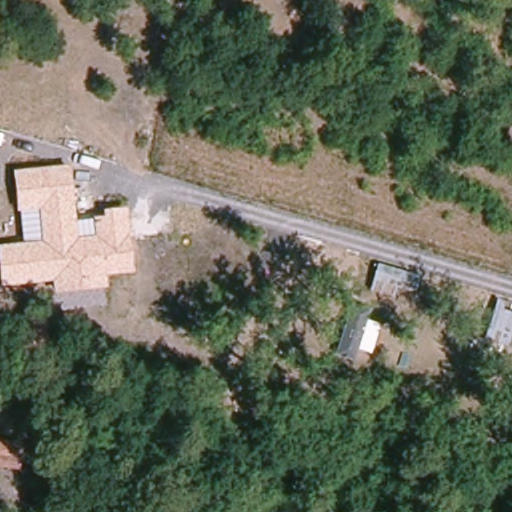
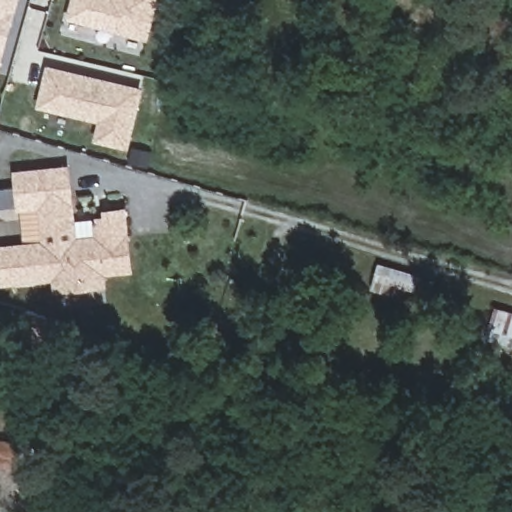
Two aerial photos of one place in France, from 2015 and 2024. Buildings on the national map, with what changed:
new [(0,64),(0,0),(18,0),(0,64)]
new [(70,17),(74,0),(155,0),(147,37),(70,17)]
new [(142,89),(127,151),(90,145),(94,124),(35,109),(43,66),(142,89)]
unchanged [(13,170),(70,165),(75,220),(92,218),(91,216),(103,215),(102,209),(126,206),(132,272),(105,275),(107,286),(54,293),(52,280),(1,285),(0,280),(0,245),(23,242),(19,210),(17,210),(13,170)]
new [(377,263),(417,275),(413,290),(393,284),(391,295),(371,289),(377,263)]
unchanged [(486,337),(496,308),(512,314),(512,347),(486,337)]
unchanged [(18,468),(0,466),(0,440),(21,442),(18,468)]

